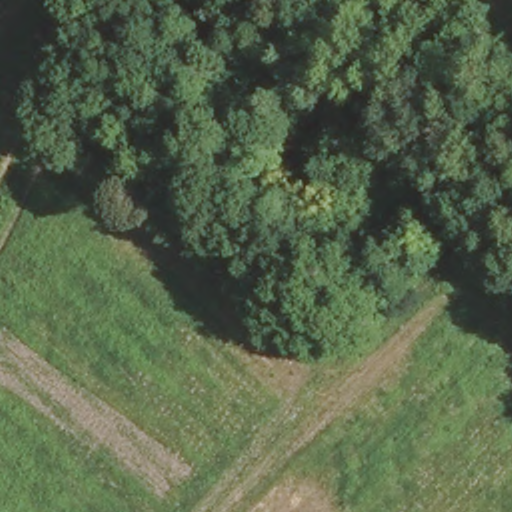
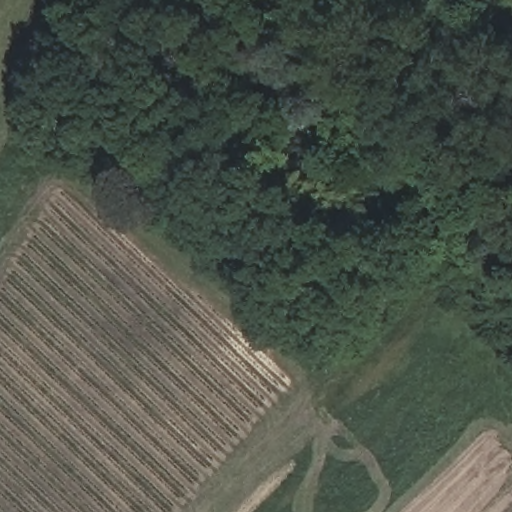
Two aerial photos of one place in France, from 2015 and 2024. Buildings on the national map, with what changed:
[]

